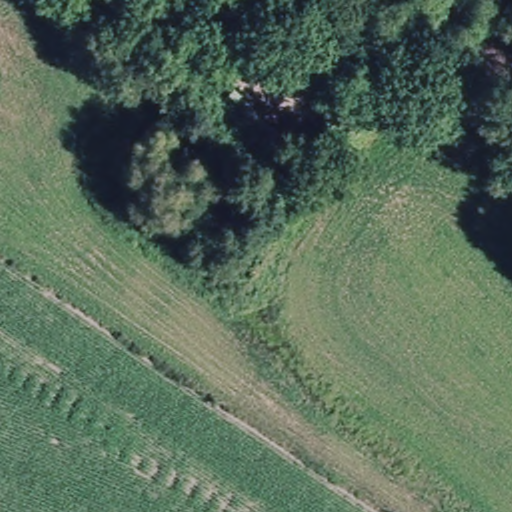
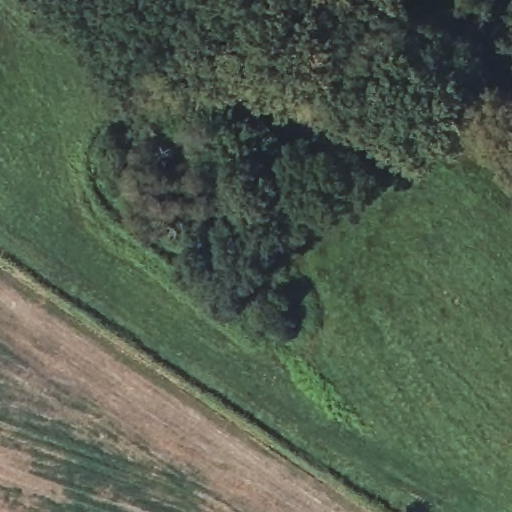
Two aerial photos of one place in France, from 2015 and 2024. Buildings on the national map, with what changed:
unchanged [(250,58),(269,34),(288,48),(271,72),(250,58)]

